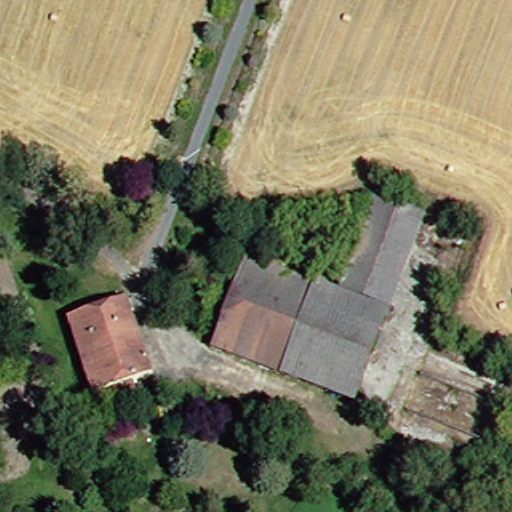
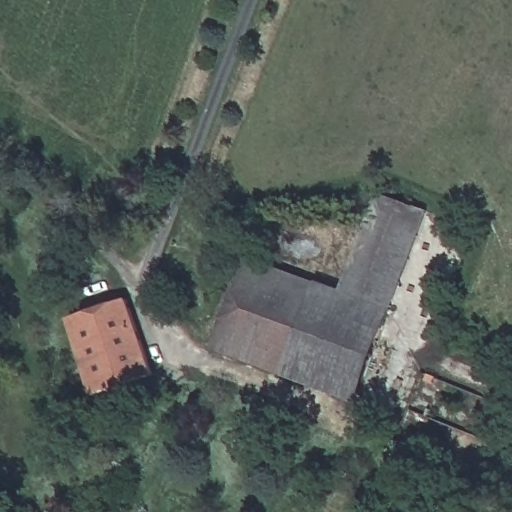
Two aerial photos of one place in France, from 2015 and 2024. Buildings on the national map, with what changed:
unchanged [(356,193),(411,207),(389,286),(334,271),(356,193)]
unchanged [(304,386),(211,360),(236,265),(328,292),(304,386)]
unchanged [(389,286),(357,399),(304,386),(328,292),(334,271),(389,286)]
unchanged [(61,325),(114,300),(148,387),(90,409),(61,325)]

